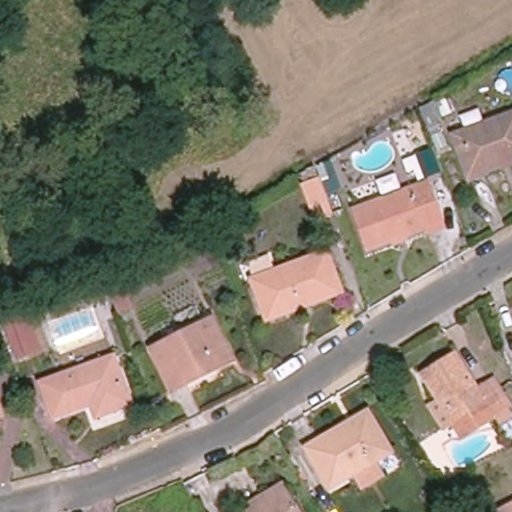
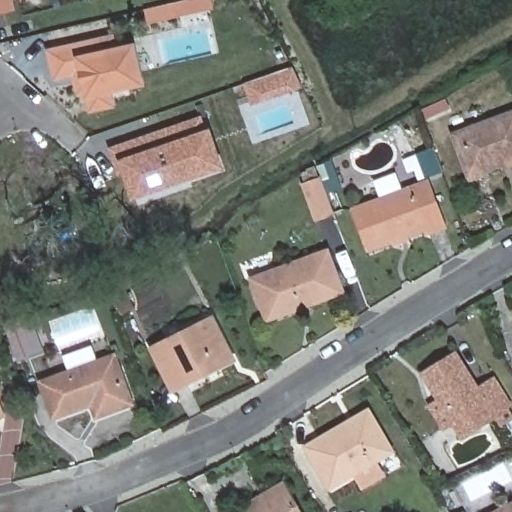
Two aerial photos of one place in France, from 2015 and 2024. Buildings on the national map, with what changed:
new [(0,0),(11,0),(12,8),(0,11),(0,0)]
new [(56,77),(50,52),(112,38),(115,51),(133,46),(142,83),(109,91),(112,105),(91,110),(82,72),(74,73),(56,77)]
new [(293,66),(301,84),(289,89),(253,101),(246,82),(282,70),(293,66)]
new [(82,72),(86,91),(79,93),(74,73),(82,72)]
unchanged [(442,117),(427,123),(420,107),(436,101),(442,117)]
unchanged [(470,176),(454,134),(512,113),(512,161),(470,176)]
unchanged [(442,129),(431,134),(428,126),(438,121),(442,129)]
new [(142,140),(143,144),(163,137),(163,135),(201,122),(205,135),(198,138),(208,169),(159,186),(161,190),(143,196),(142,192),(134,194),(126,168),(119,170),(113,149),(142,140)]
new [(198,138),(205,135),(208,135),(218,162),(207,166),(198,138)]
unchanged [(341,187),(331,190),(326,174),(336,171),(341,187)]
unchanged [(334,212),(316,219),(304,185),(321,178),(334,212)]
unchanged [(393,239),(369,248),(354,208),(427,182),(443,226),(428,232),(426,227),(406,234),(407,237),(395,242),(393,239)]
unchanged [(268,319),(253,279),(327,252),(343,295),(310,306),(309,303),(300,306),(268,319)]
unchanged [(131,309),(119,313),(111,291),(123,287),(131,309)]
unchanged [(172,389),(152,348),(211,319),(231,359),(215,367),(187,381),(172,389)]
unchanged [(430,406),(439,400),(422,374),(456,352),(479,387),(494,378),(511,404),(507,407),(512,414),(512,417),(502,423),(497,415),(463,438),(453,422),(444,428),(430,406)]
unchanged [(131,403),(95,416),(91,404),(54,417),(41,382),(113,356),(131,403)]
unchanged [(0,416),(0,410),(2,415),(0,416)]
unchanged [(385,451),(368,461),(376,474),(358,485),(350,471),(325,486),(302,447),(362,412),(385,451)]
unchanged [(510,437),(503,425),(512,421),(512,436),(510,437)]
unchanged [(251,502),(282,484),(286,489),(299,512),(248,512),(254,508),(251,502)]
unchanged [(497,512),(512,505),(512,512),(497,512)]

